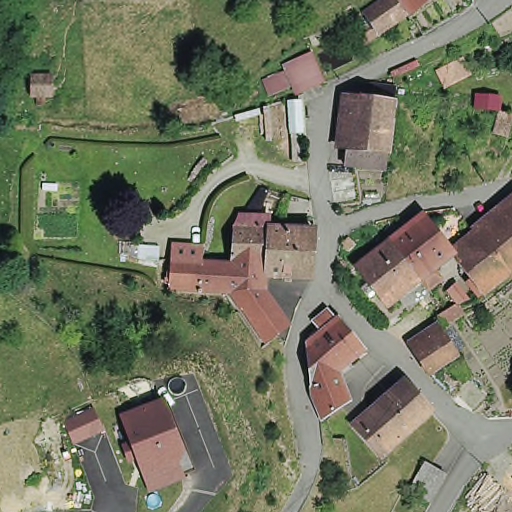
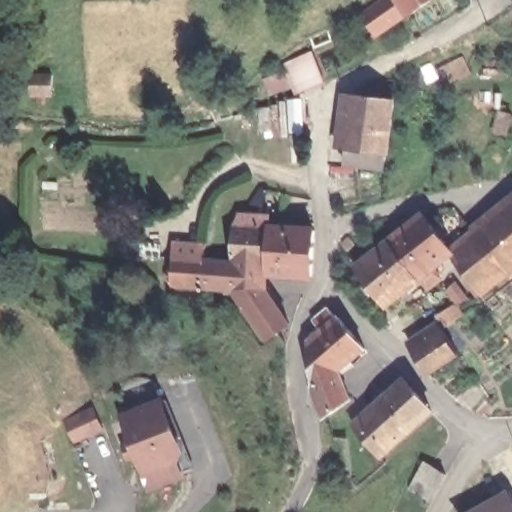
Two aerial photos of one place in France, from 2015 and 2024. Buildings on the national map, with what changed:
unchanged [(364,23),(395,3),(393,0),(444,0),(445,0),(410,24),(408,22),(378,43),(364,53),(356,42),(370,32),(364,23)]
unchanged [(327,84),(298,97),(293,87),(271,98),(266,82),(286,71),(283,66),(313,52),(327,84)]
unchanged [(51,75),(52,96),(31,96),(31,76),(51,75)]
unchanged [(352,148),(355,123),(358,96),(397,100),(394,126),(391,151),(389,170),(349,163),(352,148)]
unchanged [(245,209),(261,187),(269,189),(258,213),(245,209)]
unchanged [(474,242),(512,209),(512,276),(508,280),(476,244),(474,242)]
unchanged [(421,286),(389,246),(423,218),(455,259),(421,286)]
unchanged [(232,267),(235,230),(269,232),(267,269),(232,267)]
unchanged [(267,278),(267,269),(269,232),(314,234),(312,281),(267,278)]
unchanged [(475,254),(471,248),(476,244),(508,280),(481,301),(466,281),(480,268),(472,257),(475,254)]
unchanged [(421,286),(387,313),(356,273),(389,246),(421,286)]
unchanged [(231,267),(230,278),(229,296),(216,295),(171,293),(173,264),(231,267)]
unchanged [(232,267),(267,269),(267,278),(265,294),(242,309),(243,311),(241,312),(231,296),(232,267)]
unchanged [(242,309),(265,294),(288,329),(265,345),(243,311),(242,309)]
unchanged [(321,427),(310,392),(305,349),(322,337),(311,323),(327,311),(339,324),(365,354),(338,373),(351,405),(321,427)]
unchanged [(442,330),(459,355),(430,373),(413,348),(442,330)]
unchanged [(357,436),(353,432),(375,413),(405,386),(432,417),(401,443),(379,462),(357,436)]
unchanged [(163,399),(165,400),(195,470),(183,474),(185,480),(148,494),(134,462),(127,465),(119,445),(125,443),(119,415),(163,399)]
unchanged [(94,408),(104,431),(73,445),(63,421),(94,408)]
unchanged [(430,502),(408,489),(423,464),(445,476),(430,502)]
new [(512,497),(512,512),(467,512),(509,491),(512,497)]

